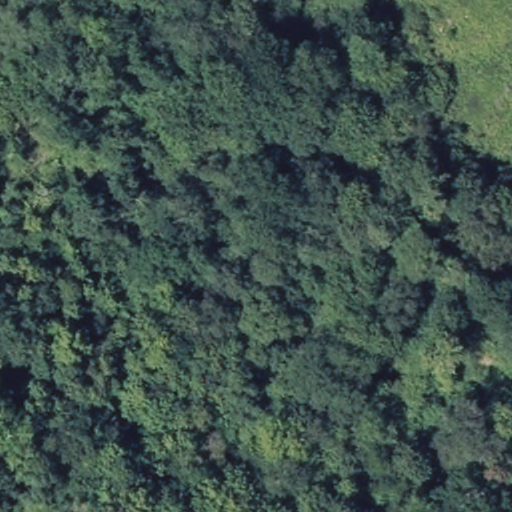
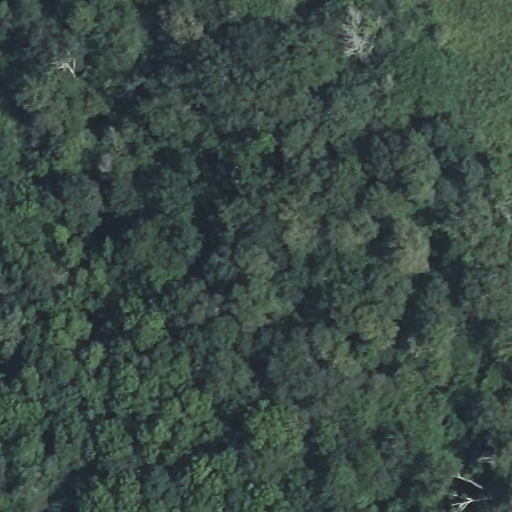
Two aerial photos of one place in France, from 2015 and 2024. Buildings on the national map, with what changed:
[]

